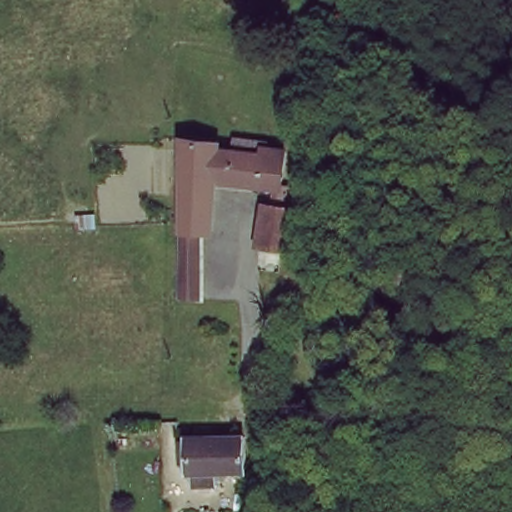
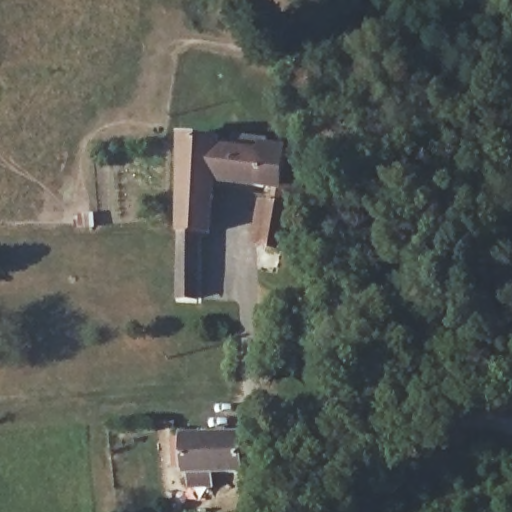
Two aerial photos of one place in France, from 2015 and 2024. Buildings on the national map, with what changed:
unchanged [(215,184),(176,182),(180,136),(286,144),(283,188),(263,187),(215,184)]
unchanged [(215,184),(212,238),(206,238),(179,239),(171,237),(176,182),(215,184)]
unchanged [(283,188),(288,188),(282,251),(258,251),(263,187),(283,188)]
unchanged [(201,295),(177,295),(179,239),(206,238),(201,295)]
unchanged [(246,438),(249,471),(193,477),(188,445),(246,438)]

